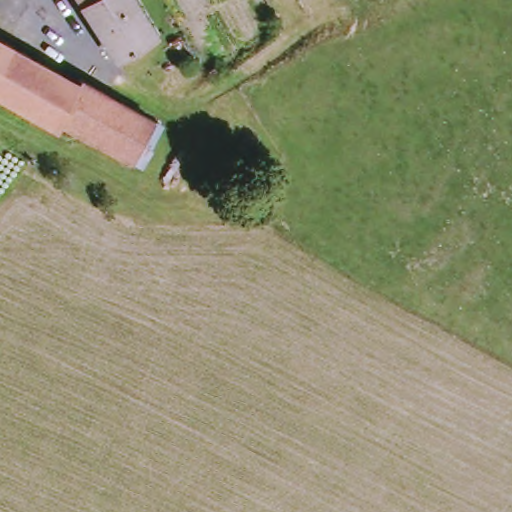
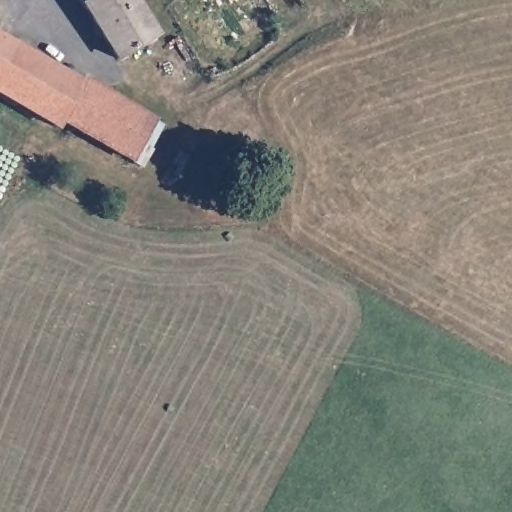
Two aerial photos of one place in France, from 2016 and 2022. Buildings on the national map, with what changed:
unchanged [(128,64),(87,0),(138,0),(165,39),(128,64)]
unchanged [(82,74),(159,119),(136,161),(60,117),(53,122),(0,93),(0,36),(77,79),(82,74)]

